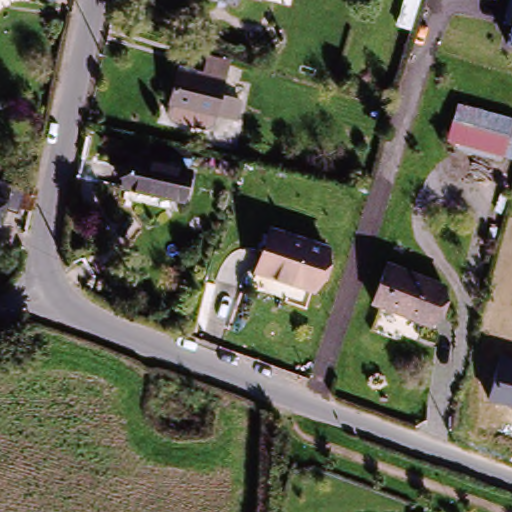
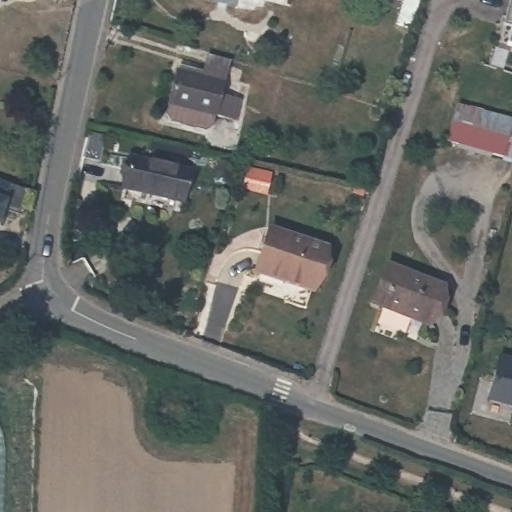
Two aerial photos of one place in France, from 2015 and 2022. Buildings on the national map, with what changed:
unchanged [(67,13),(39,0),(70,0),(67,13)]
unchanged [(260,4),(243,0),(261,0),(260,4)]
unchanged [(512,35),(512,45),(510,45),(512,35)]
unchanged [(165,108),(172,74),(216,84),(220,69),(231,71),(229,88),(222,86),(214,118),(165,108)]
unchanged [(512,119),(512,154),(510,161),(455,146),(468,108),(512,119)]
unchanged [(185,170),(180,203),(124,191),(132,158),(185,170)]
unchanged [(30,212),(22,209),(19,223),(1,216),(0,220),(0,187),(2,188),(7,190),(10,191),(15,193),(32,199),(30,212)]
unchanged [(322,248),(312,290),(257,276),(269,233),(322,248)]
unchanged [(439,276),(431,321),(374,311),(382,265),(439,276)]
unchanged [(500,359),(512,362),(512,408),(487,401),(500,359)]

